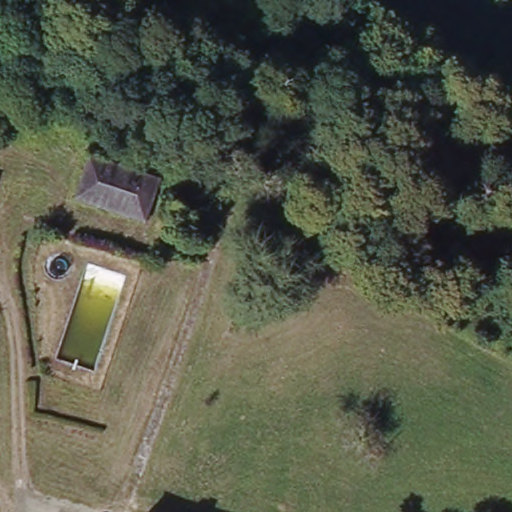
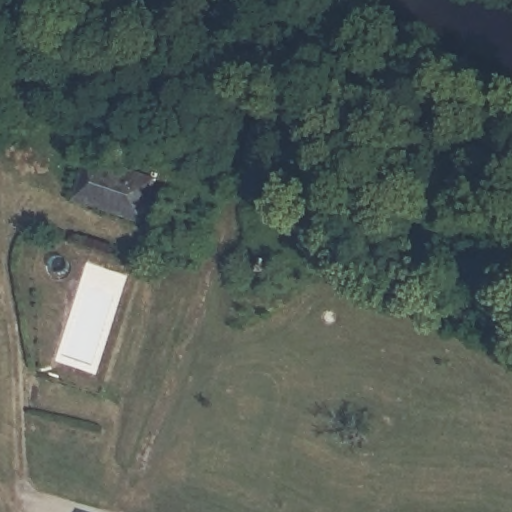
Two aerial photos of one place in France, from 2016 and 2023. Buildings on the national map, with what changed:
unchanged [(87,159),(158,182),(147,226),(74,201),(87,159)]

